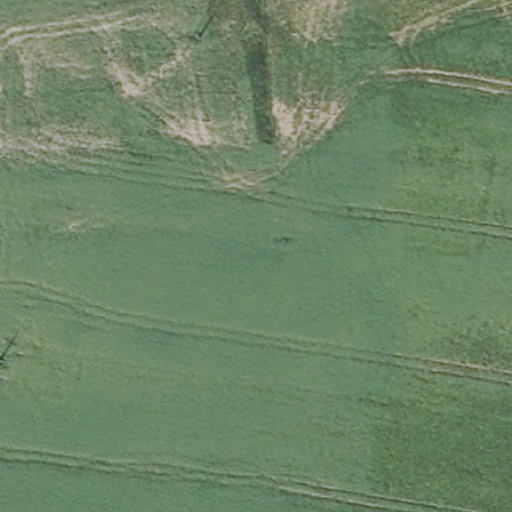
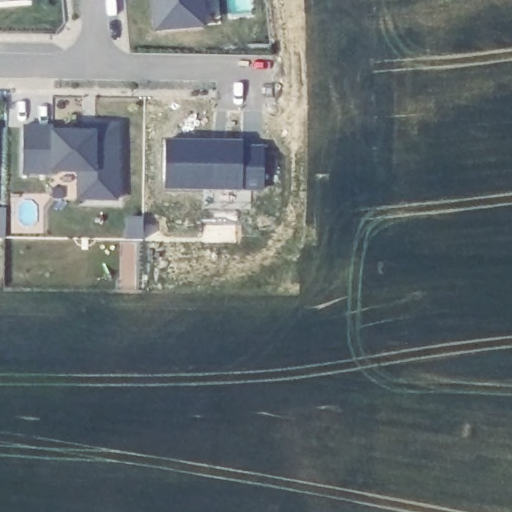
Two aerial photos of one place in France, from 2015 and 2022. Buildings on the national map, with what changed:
new [(29,2),(0,4),(0,0),(29,0),(29,2)]
new [(200,23),(154,27),(151,0),(197,0),(200,23)]
new [(50,169),(50,171),(20,171),(21,124),(51,124),(51,129),(80,129),(80,121),(93,122),(115,122),(114,197),(91,197),(76,196),(76,169),(50,169)]
new [(164,140),(242,141),(242,146),(265,147),(265,189),(243,190),(164,189),(164,140)]

